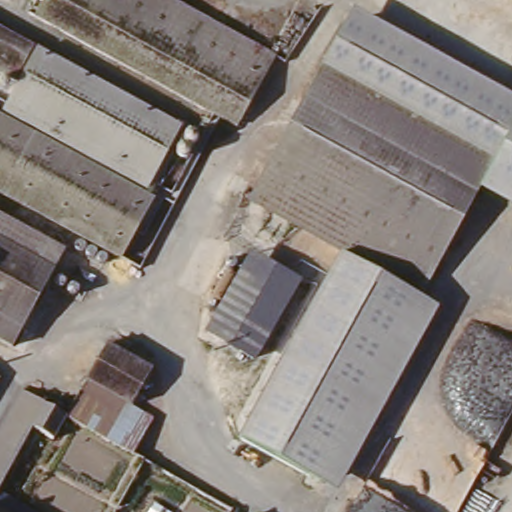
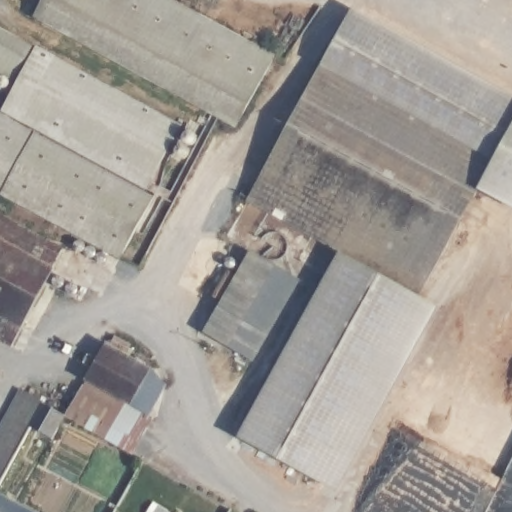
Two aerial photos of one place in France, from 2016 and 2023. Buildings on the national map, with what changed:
unchanged [(244,125),(227,116),(223,121),(34,20),(44,0),(174,0),(263,47),(279,57),(244,125)]
unchanged [(512,96),(512,209),(478,190),(481,184),(508,130),(356,50),(342,77),(323,67),(355,10),(512,96)]
unchanged [(5,75),(0,72),(0,27),(24,41),(5,75)]
unchanged [(7,72),(30,39),(184,126),(151,186),(147,184),(0,107),(0,100),(19,77),(7,72)]
unchanged [(342,77),(356,50),(508,130),(475,195),(297,102),(297,101),(316,64),(342,77)]
unchanged [(475,195),(423,295),(246,202),(297,102),(475,195)]
unchanged [(69,217),(0,181),(0,107),(147,184),(151,186),(119,246),(69,217)]
unchanged [(54,245),(5,342),(0,339),(0,215),(54,245)]
unchanged [(256,250),(301,277),(255,357),(209,329),(256,250)]
unchanged [(341,252),(423,295),(438,308),(338,491),(240,438),(341,252)]
unchanged [(117,350),(157,373),(137,408),(95,383),(117,350)]
unchanged [(4,377),(0,384),(0,375),(4,377)]
unchanged [(137,408),(113,443),(73,419),(95,383),(137,408)]
unchanged [(26,391),(33,395),(73,419),(60,437),(40,425),(0,486),(0,427),(26,391)]
unchanged [(161,421),(138,458),(113,443),(137,408),(161,421)]
unchanged [(33,512),(0,512),(0,492),(33,512)]

